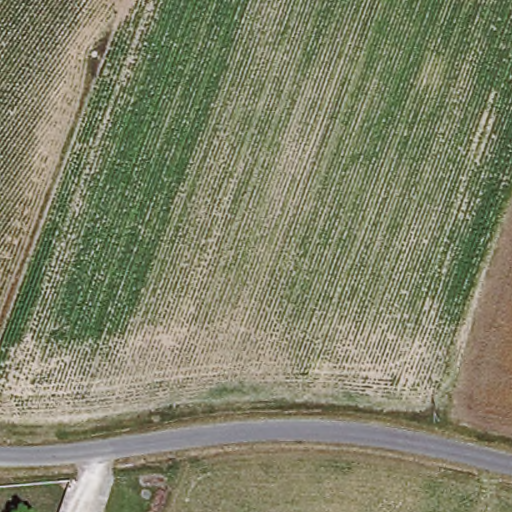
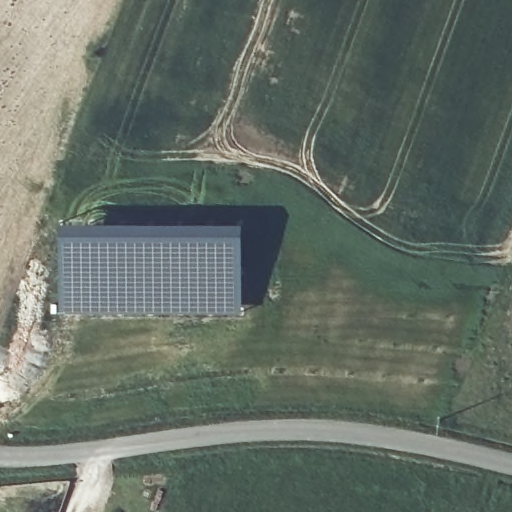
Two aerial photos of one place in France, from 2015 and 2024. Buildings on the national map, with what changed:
new [(58,228),(80,227),(80,222),(242,222),(242,316),(105,315),(57,313),(58,228)]

